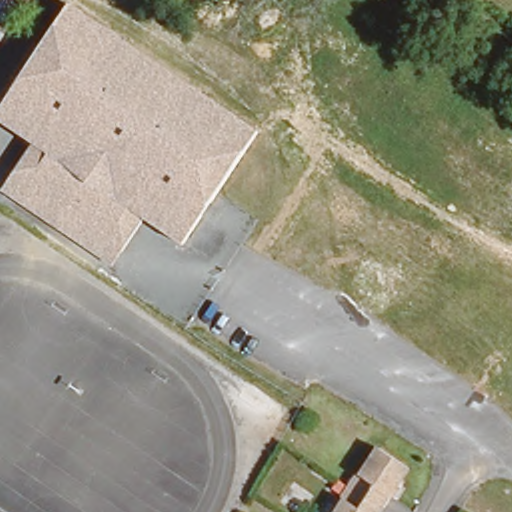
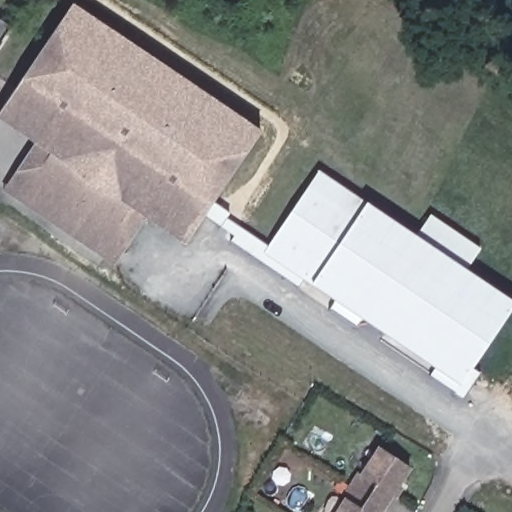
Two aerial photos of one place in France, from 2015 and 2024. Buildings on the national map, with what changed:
unchanged [(263,132),(214,206),(205,220),(187,246),(140,217),(114,263),(0,194),(0,193),(28,142),(0,121),(0,110),(72,3),(263,132)]
new [(0,40),(0,22),(9,28),(0,40)]
new [(214,206),(227,216),(225,218),(266,245),(317,169),(415,237),(431,216),(477,249),(464,272),(512,301),(512,306),(471,368),(478,373),(462,398),(430,376),(435,368),(362,319),(356,327),(330,309),(335,302),(302,279),(296,287),(230,242),(234,237),(205,220),(214,206)]
unchanged [(345,492),(352,481),(360,470),(365,473),(383,445),(411,463),(400,481),(403,483),(396,493),(393,492),(386,503),(380,512),(340,512),(350,497),(345,492)]

